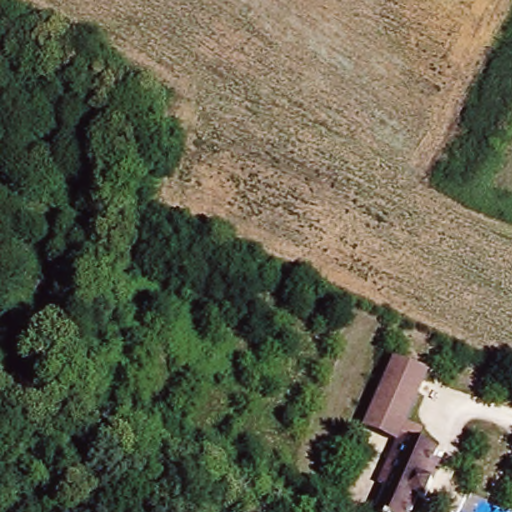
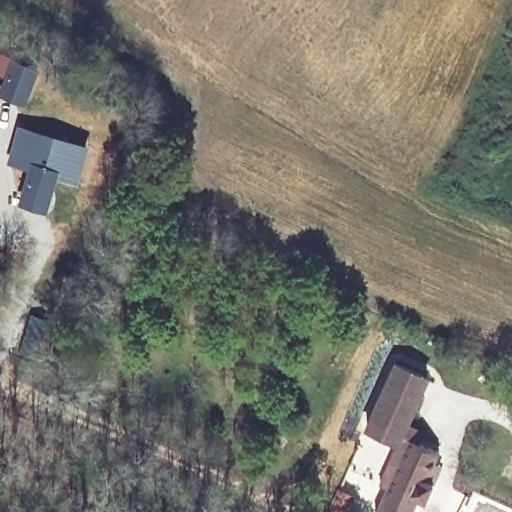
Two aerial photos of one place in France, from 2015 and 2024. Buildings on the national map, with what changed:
new [(24,105),(0,97),(0,87),(3,78),(0,77),(0,53),(39,67),(24,105)]
new [(15,123),(90,145),(79,184),(57,179),(47,212),(15,204),(24,170),(3,164),(15,123)]
unchanged [(430,375),(407,424),(423,430),(418,442),(438,451),(437,456),(402,440),(370,425),(399,361),(430,375)]
unchanged [(434,482),(425,500),(419,497),(412,512),(375,512),(388,486),(380,480),(402,440),(437,456),(427,479),(434,482)]

